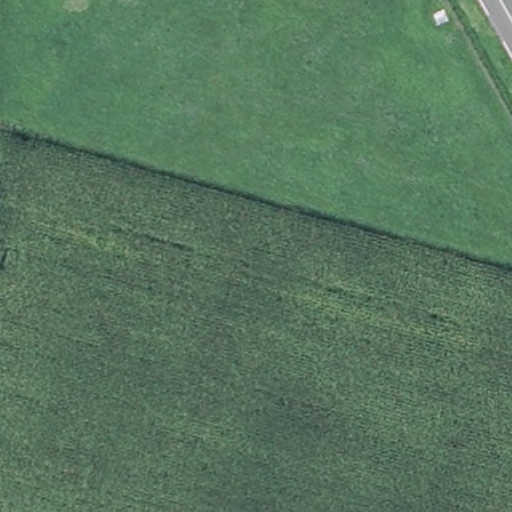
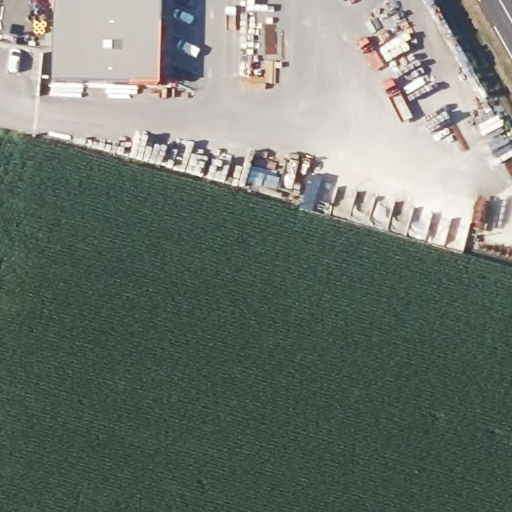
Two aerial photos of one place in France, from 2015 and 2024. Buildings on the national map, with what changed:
new [(156,87),(50,83),(53,0),(160,0),(156,87)]

